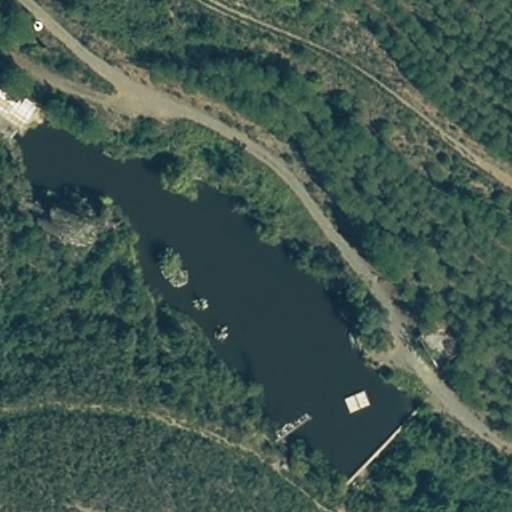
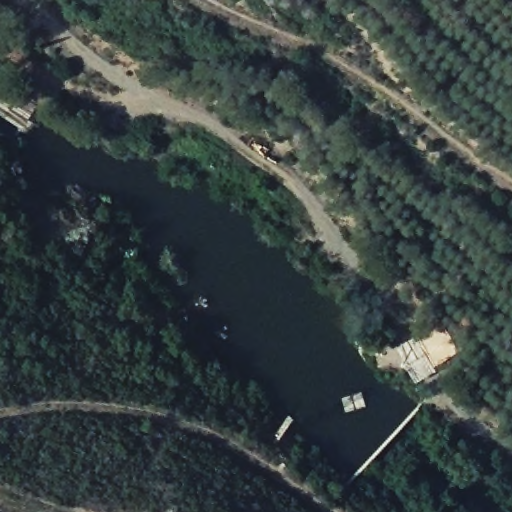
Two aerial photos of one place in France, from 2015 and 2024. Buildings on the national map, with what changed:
unchanged [(32,98),(20,119),(0,104),(0,93),(8,83),(32,98)]

